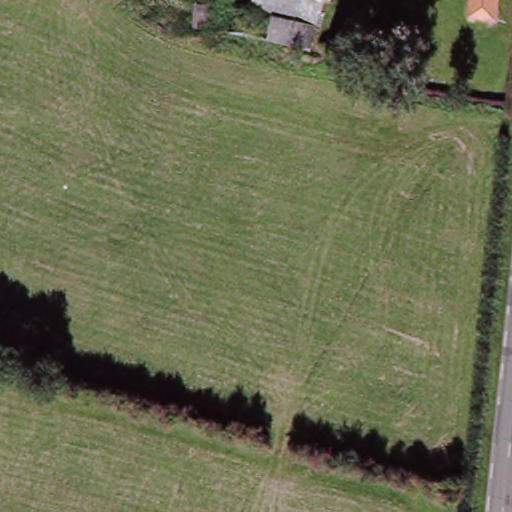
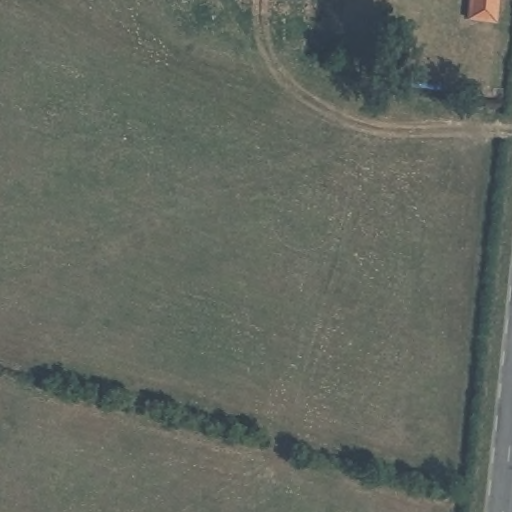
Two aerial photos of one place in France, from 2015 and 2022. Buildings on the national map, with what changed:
demolished [(310,60),(266,49),(270,26),(250,21),(255,0),(310,0),(323,4),(310,60)]
demolished [(310,0),(324,0),(323,4),(310,0)]
unchanged [(467,18),(469,0),(499,0),(497,21),(467,18)]

